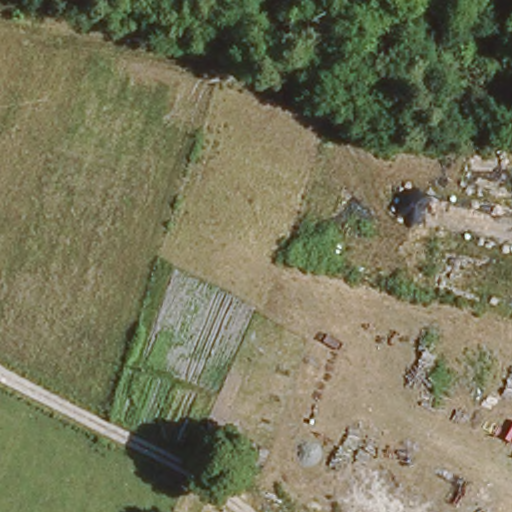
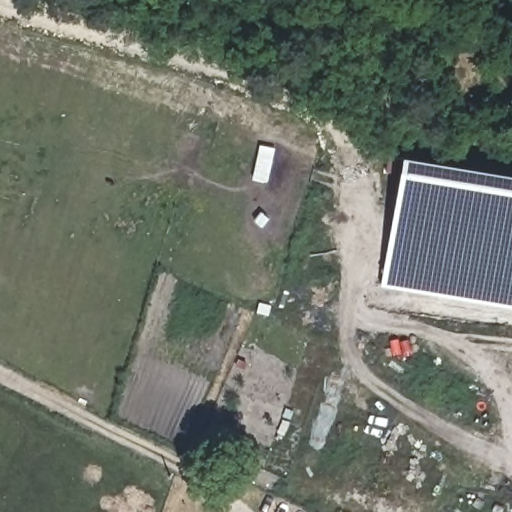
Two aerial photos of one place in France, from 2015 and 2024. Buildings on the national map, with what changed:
new [(512,174),(512,309),(380,287),(402,156),(512,174)]

